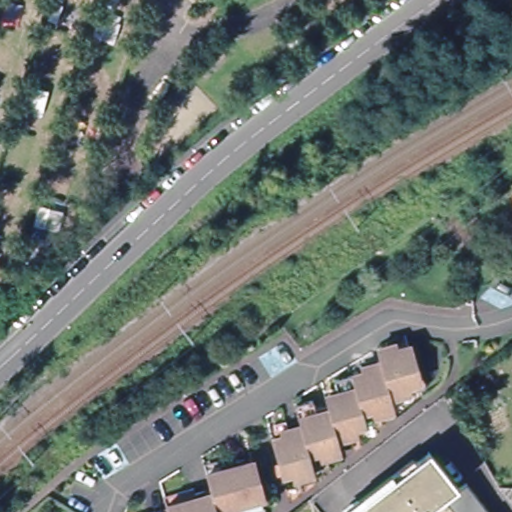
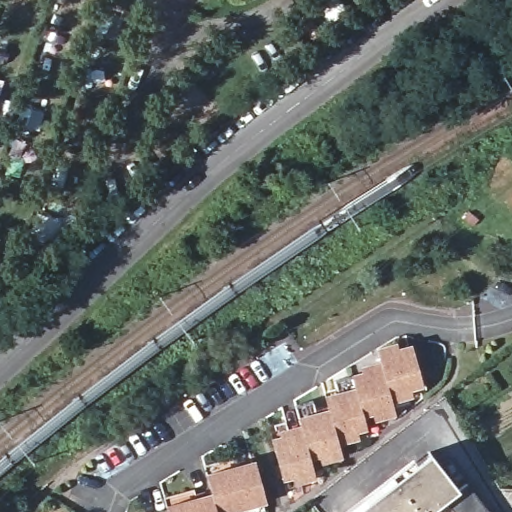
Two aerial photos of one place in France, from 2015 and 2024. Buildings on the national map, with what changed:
unchanged [(347,381),(377,373),(373,361),(404,353),(413,389),(382,397),(387,416),(373,420),(372,414),(356,418),(361,437),(346,441),(344,434),(329,438),(333,456),(320,459),(318,453),(301,458),(306,476),(290,480),(289,475),(276,478),(267,441),(295,434),(288,407),(305,402),(307,411),(321,408),(317,395),(331,392),(329,383),(347,378),(347,381)]
unchanged [(431,452),(457,489),(467,483),(488,512),(347,512),(431,452)]
unchanged [(174,508),(204,500),(200,488),(217,483),(216,478),(243,471),(252,506),(229,512),(175,512),(174,508)]

